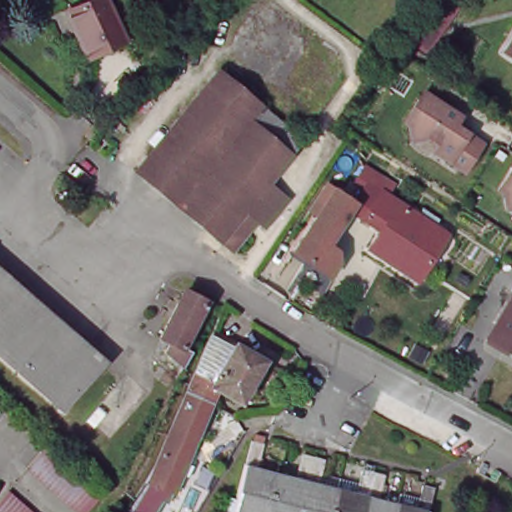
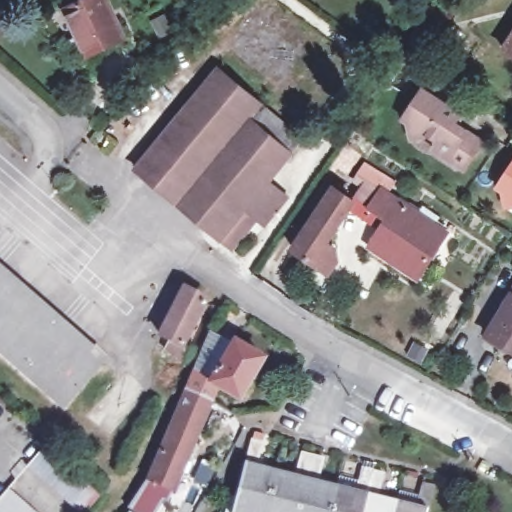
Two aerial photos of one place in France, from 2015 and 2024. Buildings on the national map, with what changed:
unchanged [(80,39),(68,10),(92,0),(112,0),(129,39),(89,57),(76,63),(68,45),(80,39)]
unchanged [(412,36),(417,29),(432,5),(450,18),(434,40),(429,49),(412,36)]
unchanged [(512,53),(509,50),(512,45),(512,53)]
unchanged [(139,172),(224,70),(304,136),(307,139),(274,182),(294,197),(271,225),(262,219),(236,249),(139,172)]
unchanged [(459,121),(487,139),(469,166),(440,147),(444,140),(434,133),(418,136),(414,120),(409,117),(429,89),(464,112),(459,121)]
unchanged [(499,189),(494,185),(512,159),(512,202),(502,204),(499,189)]
unchanged [(418,279),(370,246),(381,229),(349,209),(367,184),(357,177),(367,162),(377,169),(393,180),(397,183),(389,194),(447,234),(418,279)]
unchanged [(326,244),(336,250),(338,261),(329,274),(293,250),(334,189),(353,202),(349,208),(349,209),(326,244)]
unchanged [(111,362),(68,411),(0,351),(0,265),(111,362)]
unchanged [(188,289),(209,302),(188,344),(198,351),(190,364),(173,352),(178,342),(164,334),(188,289)]
unchanged [(508,306),(512,300),(512,366),(483,348),(508,306)]
unchanged [(163,512),(140,512),(157,484),(153,481),(156,477),(163,467),(165,461),(168,454),(176,434),(180,423),(191,396),(194,387),(204,364),(211,346),(215,338),(218,332),(238,344),(239,343),(268,360),(242,400),(225,389),(218,406),(217,407),(211,420),(194,459),(181,493),(176,491),(163,512)]
unchanged [(259,439),(271,442),(266,466),(286,471),(304,476),(309,452),(321,455),(333,458),(329,472),(366,481),(369,468),(381,471),(393,474),(387,497),(406,501),(408,492),(426,496),(429,483),(442,486),(435,512),(241,512),(259,439)]
unchanged [(28,464),(48,441),(104,490),(83,512),(28,464)]
unchanged [(471,472),(475,462),(493,473),(489,481),(471,472)]
unchanged [(2,504),(14,490),(39,512),(0,512),(0,507),(2,504)]

